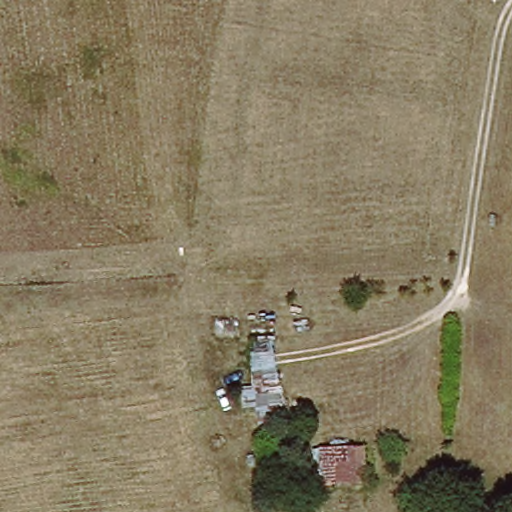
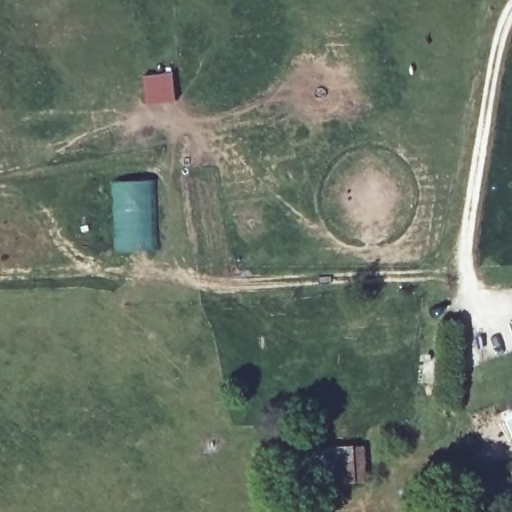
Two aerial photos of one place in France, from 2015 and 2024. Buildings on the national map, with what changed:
new [(172,72),(175,102),(145,106),(141,76),(172,72)]
new [(155,179),(156,249),(114,252),(110,181),(155,179)]
unchanged [(236,337),(259,333),(266,401),(260,402),(261,412),(246,415),(245,404),(236,337)]
unchanged [(323,488),(322,451),(353,448),(364,447),(365,467),(354,468),(355,487),(323,488)]

